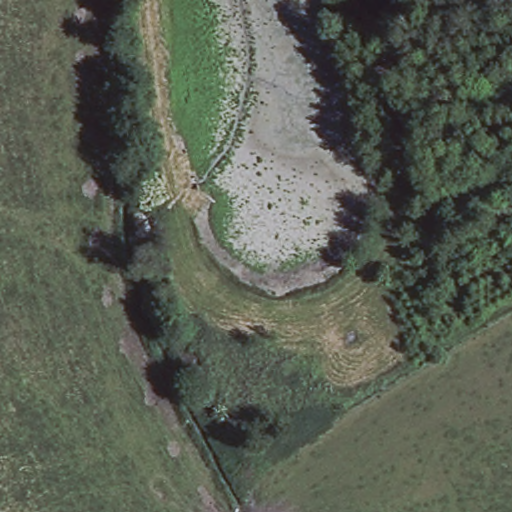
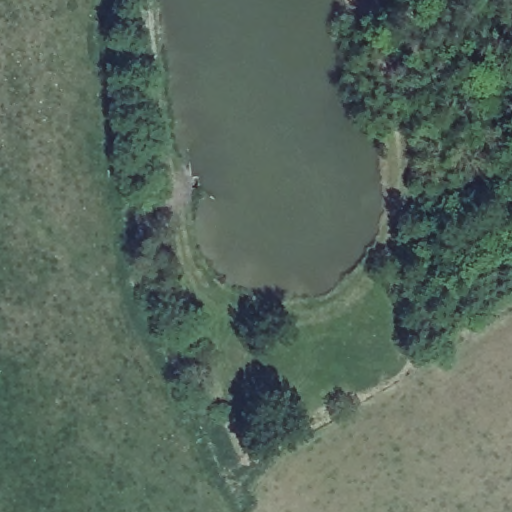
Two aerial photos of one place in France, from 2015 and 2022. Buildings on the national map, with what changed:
unchanged [(385,25),(374,0),(397,0),(405,16),(385,25)]

